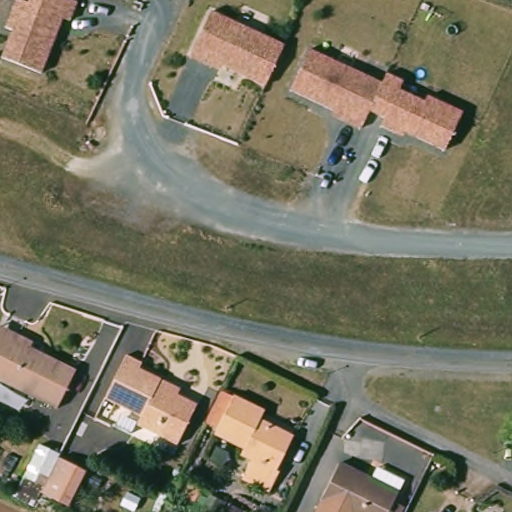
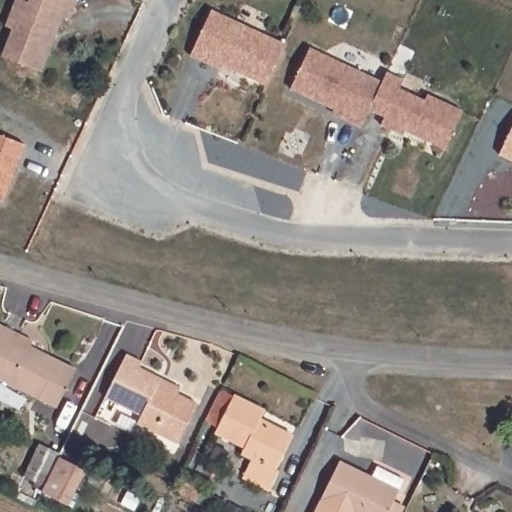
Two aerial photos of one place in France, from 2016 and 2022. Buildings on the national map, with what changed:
unchanged [(66,0),(39,74),(2,59),(12,31),(5,29),(16,0),(18,0),(22,1),(27,4),(29,0),(66,0)]
unchanged [(189,56),(210,9),(283,42),(265,84),(219,64),(217,69),(189,56)]
unchanged [(308,48),(381,81),(386,71),(403,78),(399,88),(423,100),(426,94),(461,110),(445,148),(402,131),(401,135),(380,125),(383,116),(367,110),(360,126),(330,114),(332,109),(290,89),(308,48)]
new [(498,156),(512,126),(512,163),(498,156)]
new [(0,136),(25,146),(2,203),(0,202),(0,136)]
unchanged [(75,375),(56,414),(0,386),(0,331),(18,340),(32,347),(30,352),(75,375)]
unchanged [(177,454),(137,434),(141,426),(104,408),(125,365),(141,372),(139,378),(161,389),(179,398),(176,403),(197,414),(177,454)]
unchanged [(264,425),(297,441),(280,475),(283,476),(273,496),(246,483),(255,464),(245,459),(248,453),(219,439),(220,436),(207,430),(225,394),(237,400),(268,416),(264,425)]
unchanged [(58,458),(85,471),(68,506),(41,493),(58,458)]
unchanged [(338,473),(371,489),(376,477),(403,491),(398,502),(395,509),(393,512),(319,512),(338,473)]
unchanged [(229,506),(241,512),(226,512),(229,506)]

